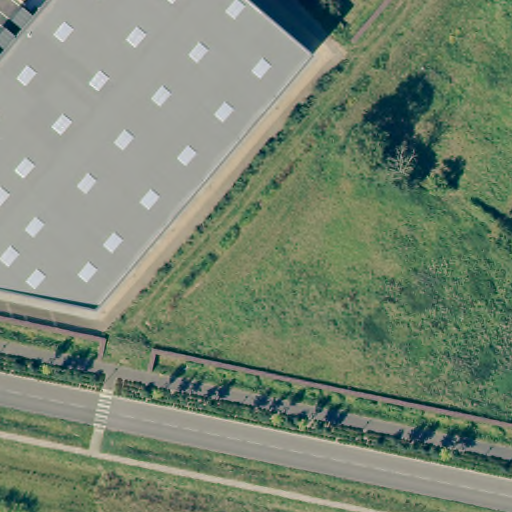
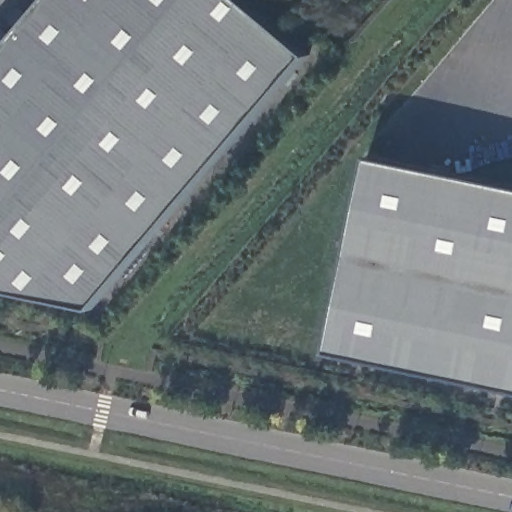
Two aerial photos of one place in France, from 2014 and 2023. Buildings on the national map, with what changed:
unchanged [(307,56),(91,308),(0,290),(0,54),(46,0),(242,0),(307,56)]
new [(329,353),(367,156),(512,187),(512,392),(329,353)]

